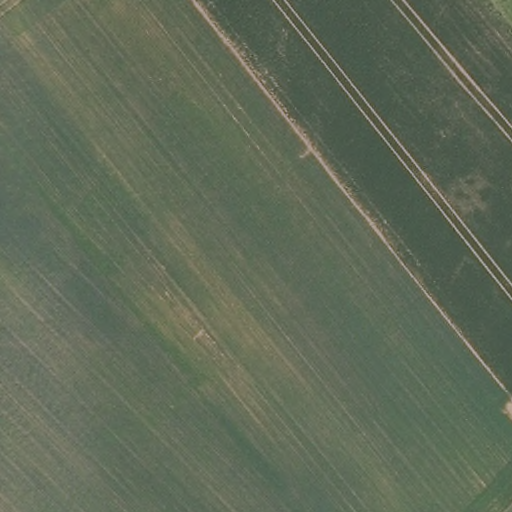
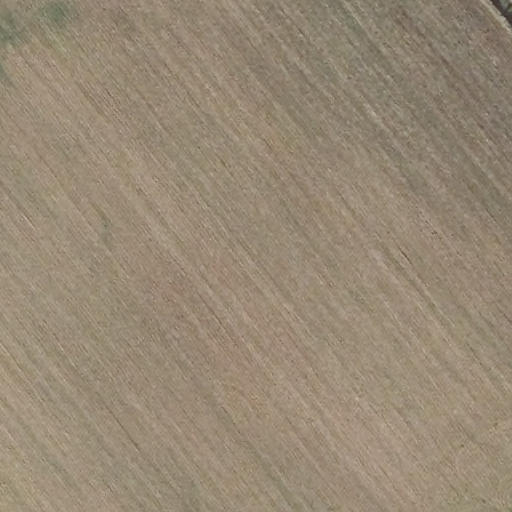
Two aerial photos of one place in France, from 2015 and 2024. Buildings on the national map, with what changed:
[]

